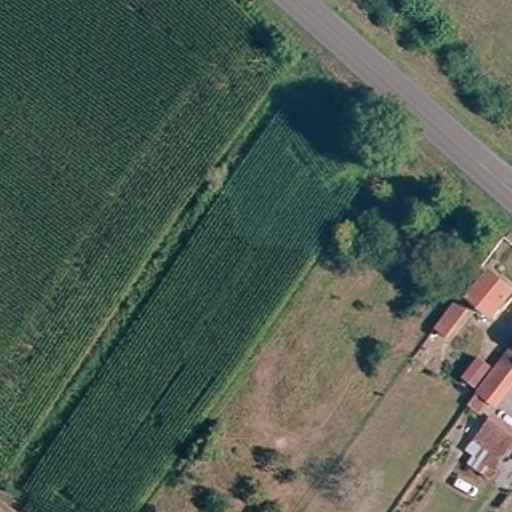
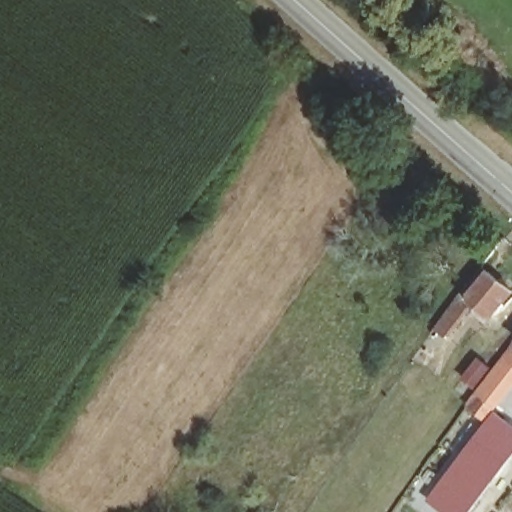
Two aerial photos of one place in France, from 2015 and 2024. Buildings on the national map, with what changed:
unchanged [(466,295),(486,268),(512,290),(512,300),(497,319),(480,305),(454,340),(440,330),(466,295)]
unchanged [(476,393),(509,350),(512,353),(512,380),(492,406),(476,393)]
new [(512,458),(471,512),(444,512),(428,500),(497,411),(512,423),(512,458)]
demolished [(487,457),(480,465),(474,459),(497,430),(512,441),(512,453),(501,468),(487,457)]

